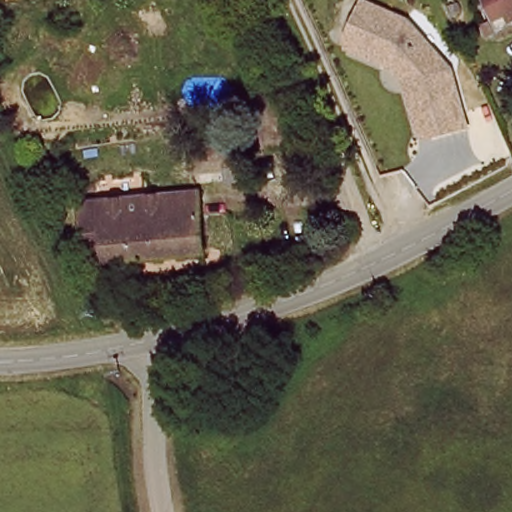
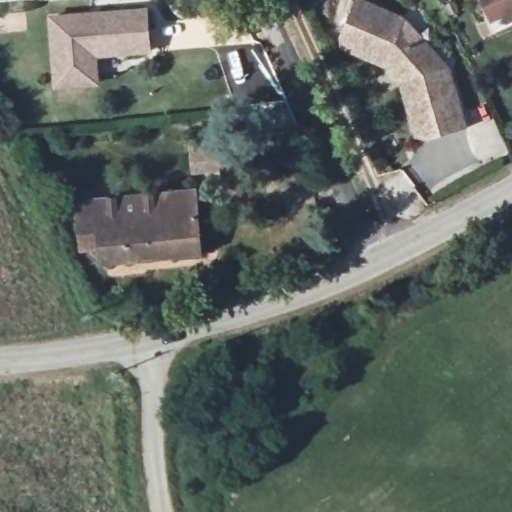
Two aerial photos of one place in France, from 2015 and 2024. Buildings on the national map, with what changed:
unchanged [(503,10),(492,15),(485,0),(512,0),(512,18),(509,19),(503,10)]
unchanged [(400,84),(390,72),(342,52),(341,39),(356,4),(403,24),(399,32),(415,39),(437,63),(441,78),(449,76),(466,132),(430,143),(417,141),(400,84)]
new [(54,88),(53,78),(47,19),(143,11),(147,52),(92,56),(94,74),(95,84),(54,88)]
unchanged [(222,145),(225,164),(193,167),(190,149),(222,145)]
unchanged [(195,190),(199,253),(102,261),(99,244),(88,244),(87,231),(82,231),(77,201),(195,190)]

